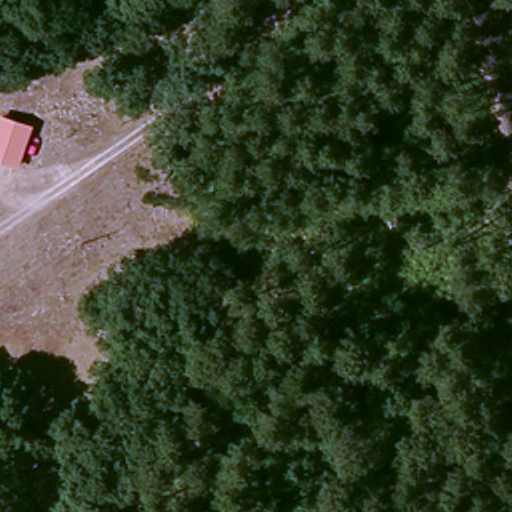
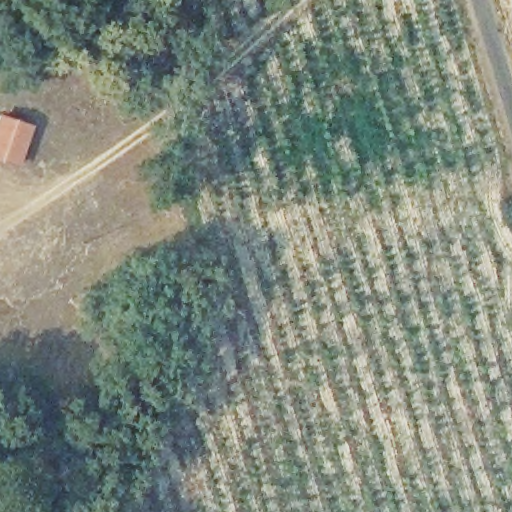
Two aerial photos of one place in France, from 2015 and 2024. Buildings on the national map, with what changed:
unchanged [(0,161),(0,114),(1,113),(34,125),(20,168),(0,161)]

